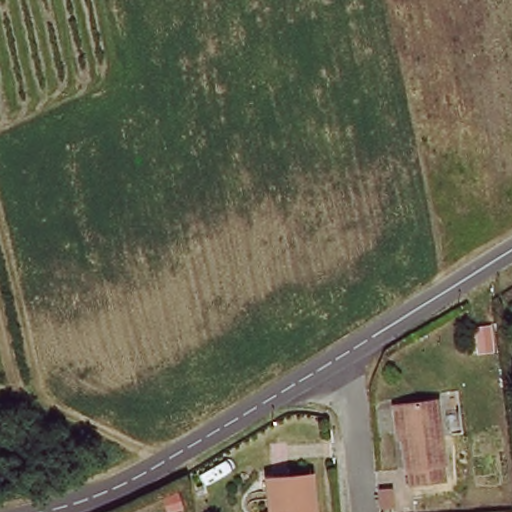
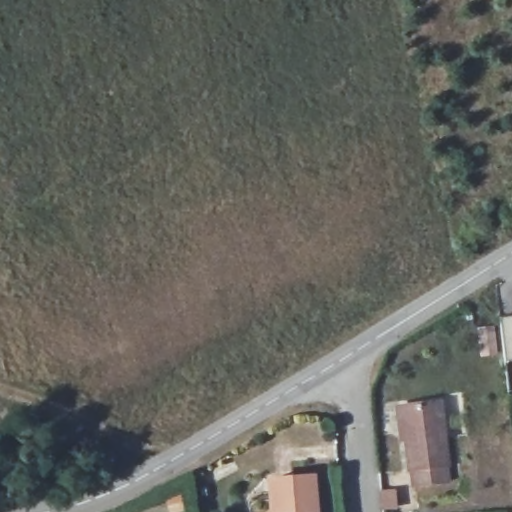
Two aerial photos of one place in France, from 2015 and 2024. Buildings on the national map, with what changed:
new [(502,319),(512,318),(512,362),(507,363),(502,319)]
unchanged [(443,404),(451,494),(408,497),(398,409),(443,404)]
unchanged [(273,482),(316,478),(321,512),(276,512),(273,482)]

